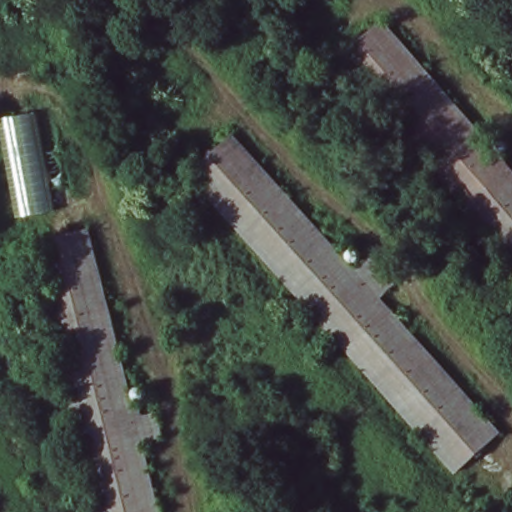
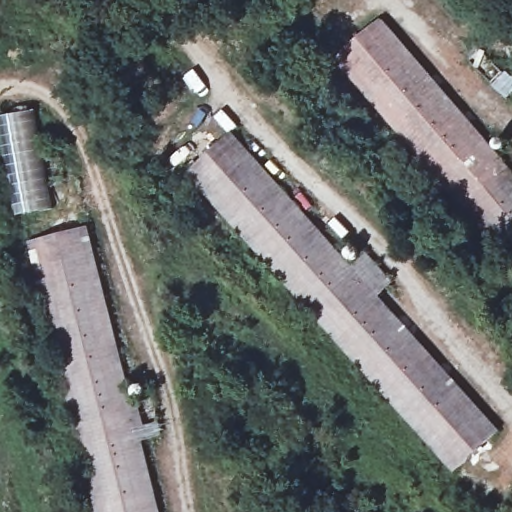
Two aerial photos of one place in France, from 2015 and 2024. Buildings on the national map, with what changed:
unchanged [(512,149),(512,269),(440,185),(336,60),(385,21),(491,150),(500,158),(512,149)]
unchanged [(0,129),(0,116),(40,113),(58,217),(15,219),(0,129)]
unchanged [(371,258),(395,286),(380,299),(501,434),(457,470),(329,328),(190,177),(234,136),(355,273),(371,258)]
unchanged [(93,230),(104,279),(132,407),(154,402),(162,437),(139,443),(147,478),(155,512),(98,512),(67,378),(40,271),(32,244),(55,239),(93,230)]

